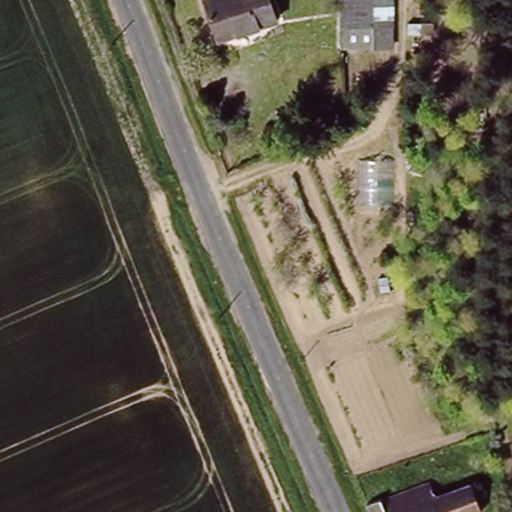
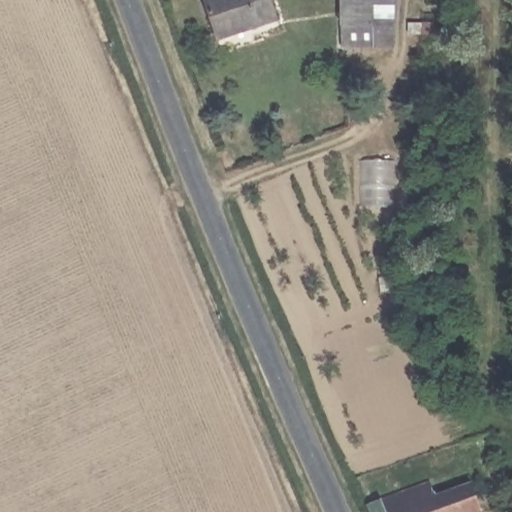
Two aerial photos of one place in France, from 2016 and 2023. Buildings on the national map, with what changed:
unchanged [(205,1),(207,0),(269,0),(276,18),(220,40),(205,1)]
unchanged [(342,25),(342,0),(370,0),(370,25),(342,25)]
unchanged [(370,504),(437,481),(440,493),(475,481),(485,509),(477,512),(374,512),(370,504)]

